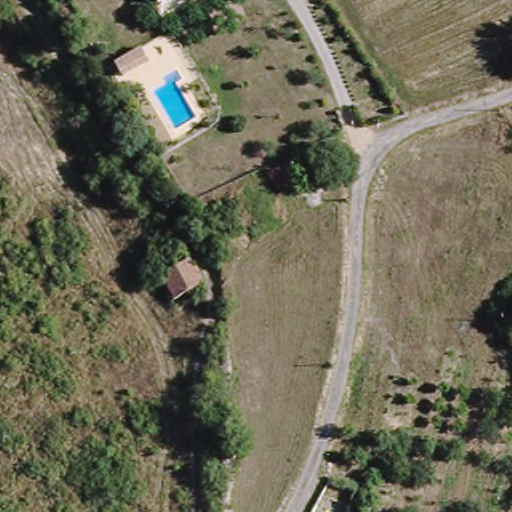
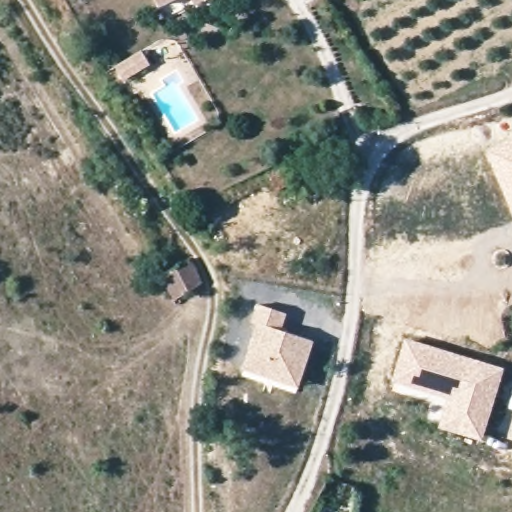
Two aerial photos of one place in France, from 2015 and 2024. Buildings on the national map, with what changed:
unchanged [(157,1),(156,0),(160,0),(157,1)]
unchanged [(196,0),(201,0),(197,2),(196,0)]
unchanged [(140,50),(150,66),(119,82),(111,66),(140,50)]
new [(512,137),(512,213),(484,147),(512,137)]
unchanged [(296,191),(273,200),(267,181),(290,171),(296,191)]
unchanged [(202,287),(171,304),(156,278),(188,258),(202,287)]
new [(286,312),(280,330),(315,342),(300,386),(243,367),(258,323),(251,322),(257,304),(286,312)]
new [(406,337),(506,367),(483,440),(438,427),(453,383),(456,385),(458,380),(424,370),(419,388),(394,383),(406,337)]

